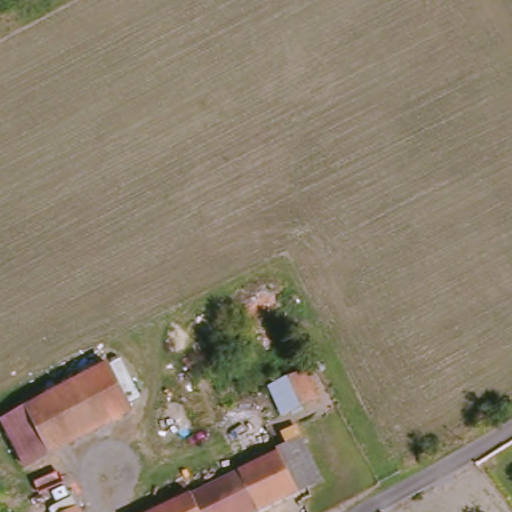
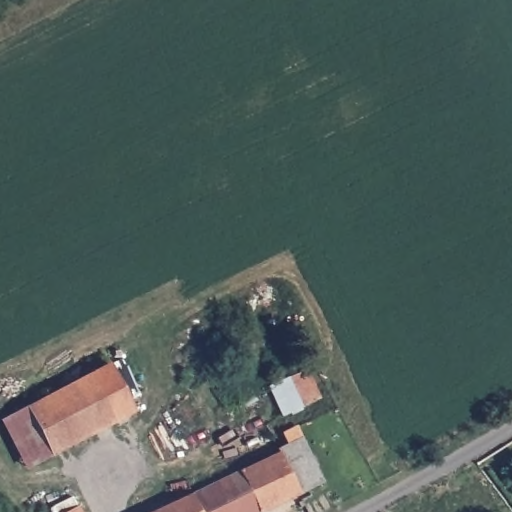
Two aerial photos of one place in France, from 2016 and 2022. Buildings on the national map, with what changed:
unchanged [(109,364),(134,408),(28,463),(4,421),(109,364)]
unchanged [(306,370),(320,396),(288,410),(274,384),(306,370)]
unchanged [(313,465),(324,491),(272,512),(147,512),(241,473),(291,452),(287,443),(289,442),(301,438),(313,465)]
unchanged [(88,512),(70,512),(84,505),(88,512)]

